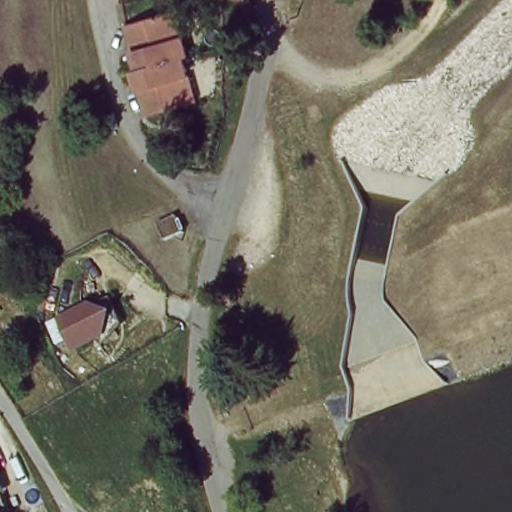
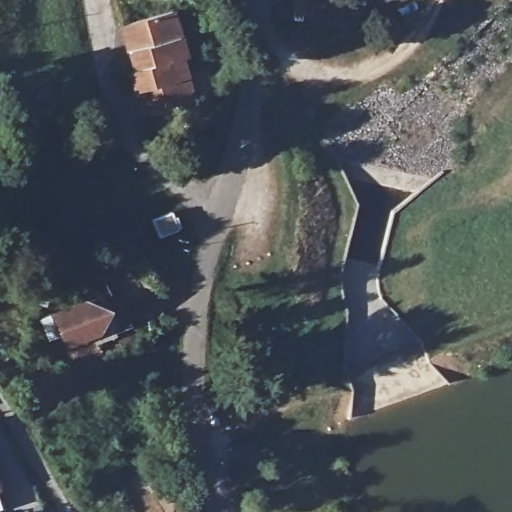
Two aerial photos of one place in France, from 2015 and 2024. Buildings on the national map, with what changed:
unchanged [(130,26),(178,11),(184,32),(135,51),(130,26)]
unchanged [(187,44),(190,55),(185,56),(192,85),(197,102),(148,115),(136,70),(139,68),(135,51),(184,32),(187,44)]
unchanged [(170,212),(177,232),(157,239),(150,220),(170,212)]
unchanged [(101,307),(94,328),(65,343),(51,316),(80,301),(101,307)]

